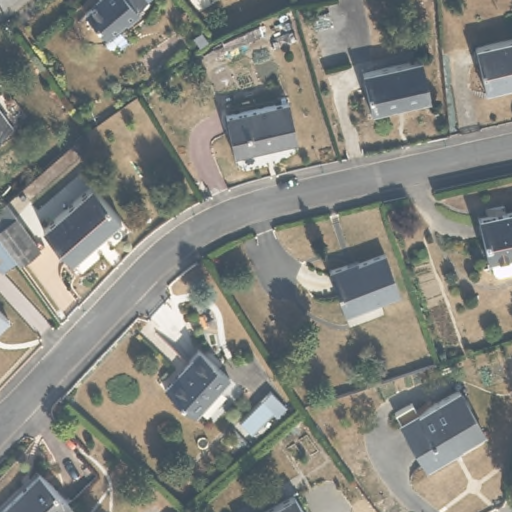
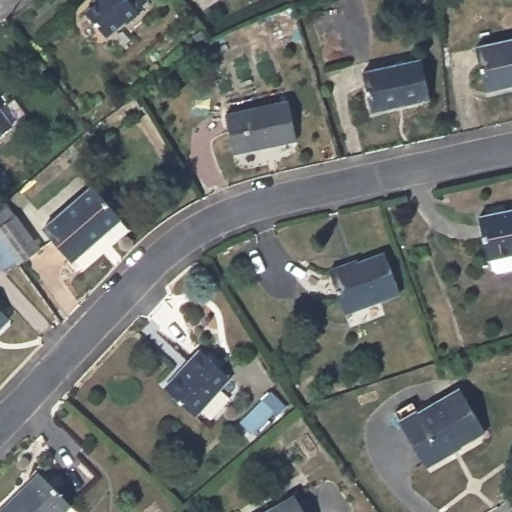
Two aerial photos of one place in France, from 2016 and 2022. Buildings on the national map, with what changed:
unchanged [(96,0),(145,0),(146,2),(136,10),(139,15),(126,25),(124,22),(105,39),(84,14),(93,6),(91,4),(96,0)]
unchanged [(512,35),(512,83),(485,90),(473,45),(512,35)]
unchanged [(426,98),(368,112),(360,72),(418,59),(426,98)]
unchanged [(298,140),(236,154),(227,115),(288,101),(298,140)]
unchanged [(0,135),(0,116),(9,129),(0,135)]
unchanged [(121,216),(72,260),(42,227),(91,183),(121,216)]
unchanged [(511,266),(502,268),(497,266),(493,262),(486,250),(477,214),(512,206),(512,266),(511,266)]
unchanged [(0,226),(18,210),(50,253),(30,268),(27,265),(0,228),(0,226)]
unchanged [(0,259),(0,228),(27,265),(14,276),(0,259)]
unchanged [(348,260),(349,263),(387,250),(402,291),(345,311),(330,266),(348,260)]
unchanged [(0,330),(0,312),(9,321),(0,330)]
unchanged [(231,374),(195,412),(166,385),(202,347),(231,374)]
unchanged [(488,427),(428,463),(400,416),(462,381),(488,427)]
unchanged [(272,409),(251,430),(240,417),(261,396),(272,409)]
unchanged [(66,512),(0,512),(0,511),(42,470),(74,505),(66,512)]
unchanged [(297,493),(307,512),(264,512),(297,493)]

